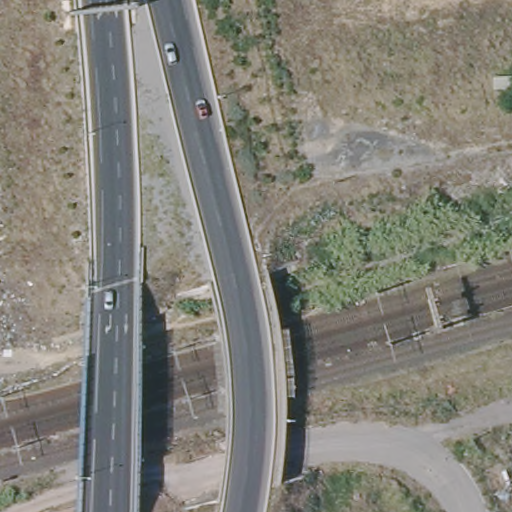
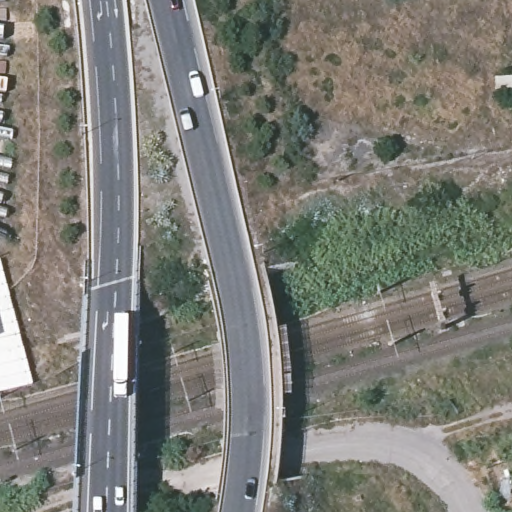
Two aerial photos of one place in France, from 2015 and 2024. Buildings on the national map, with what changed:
new [(0,393),(0,259),(33,386),(0,393)]

